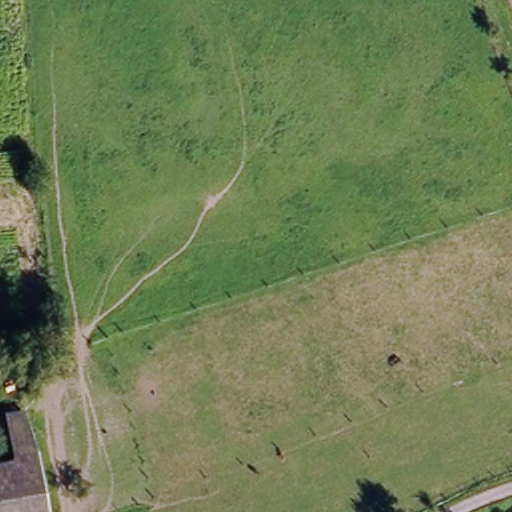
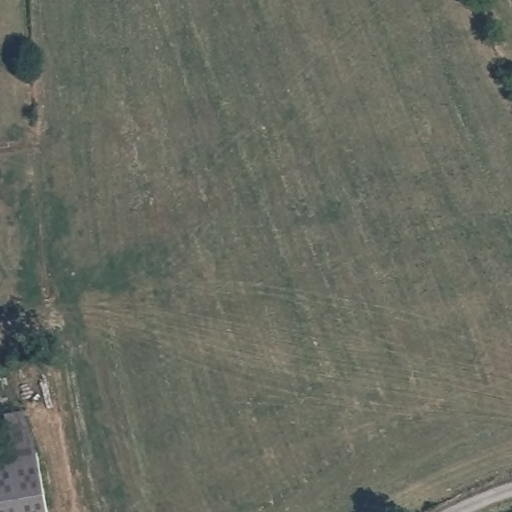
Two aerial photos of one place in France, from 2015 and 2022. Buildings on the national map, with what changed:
unchanged [(13,466),(3,416),(26,415),(40,458),(50,512),(0,512),(0,468),(13,466)]

